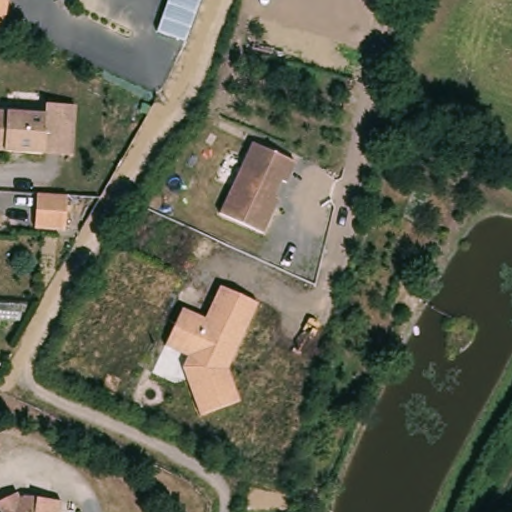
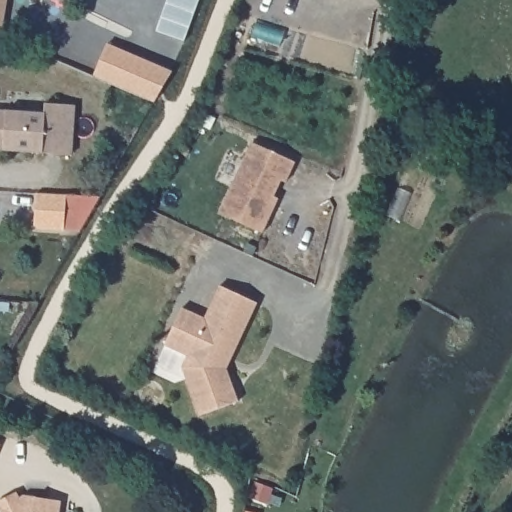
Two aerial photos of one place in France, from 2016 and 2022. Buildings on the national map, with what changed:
unchanged [(1,37),(0,36),(0,0),(7,0),(1,37)]
unchanged [(167,0),(200,0),(185,42),(156,32),(167,0)]
new [(113,44),(177,73),(160,104),(98,76),(113,44)]
unchanged [(69,153),(41,151),(0,148),(0,108),(42,111),(42,101),(63,102),(72,103),(69,153)]
unchanged [(277,210),(266,235),(221,216),(253,144),(297,163),(288,184),(283,182),(276,198),(281,200),(277,210)]
unchanged [(51,196),(67,197),(65,232),(35,231),(37,196),(51,196)]
unchanged [(240,400),(202,416),(183,366),(188,355),(167,345),(183,308),(204,317),(219,284),(257,300),(233,355),(227,368),(240,400)]
unchanged [(22,500),(27,499),(64,504),(63,512),(1,512),(0,509),(0,505),(19,496),(22,500)]

